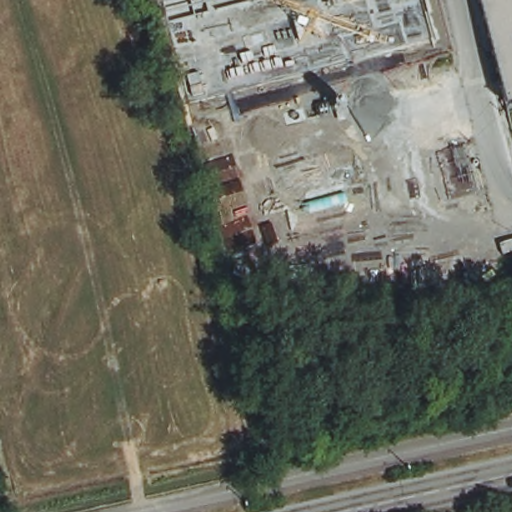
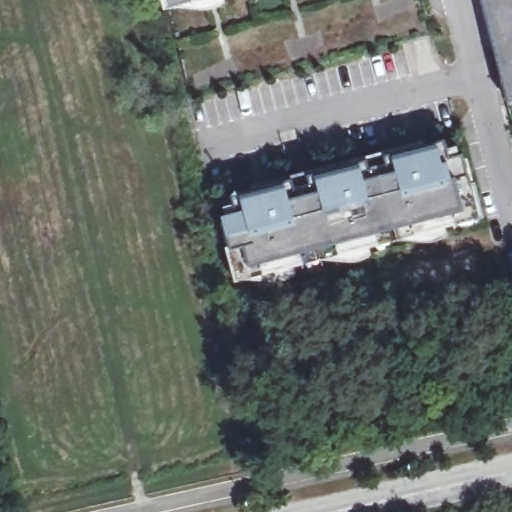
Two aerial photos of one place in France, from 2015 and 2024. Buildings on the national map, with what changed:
new [(166,12),(162,0),(210,0),(193,5),(166,12)]
unchanged [(510,110),(482,0),(512,0),(512,109),(510,110)]
new [(423,142),(425,149),(436,146),(444,144),(445,150),(458,147),(460,156),(479,220),(456,226),(416,236),(379,245),(339,256),(305,265),(264,276),(236,284),(226,247),(229,246),(228,239),(223,219),(226,218),(224,209),(233,206),(232,199),(238,197),(253,194),(251,187),(423,142)]

